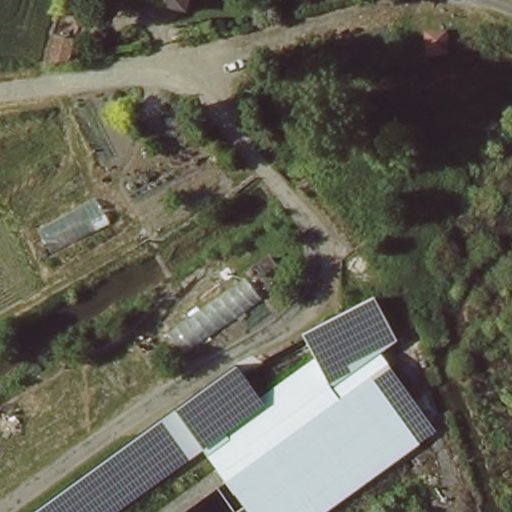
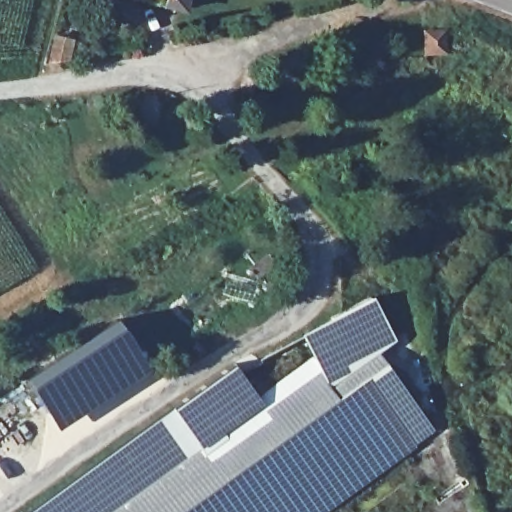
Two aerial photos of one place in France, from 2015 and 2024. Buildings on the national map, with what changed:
demolished [(134,3),(134,0),(192,0),(189,14),(134,3)]
unchanged [(452,28),(454,56),(420,59),(418,31),(452,28)]
unchanged [(339,337),(328,316),(376,293),(401,343),(341,373),(326,343),(339,337)]
new [(54,359),(114,317),(150,368),(57,429),(25,381),(54,359)]
unchanged [(394,405),(375,414),(366,395),(384,386),(394,405)]
unchanged [(196,444),(103,512),(34,512),(176,409),(196,444)]

